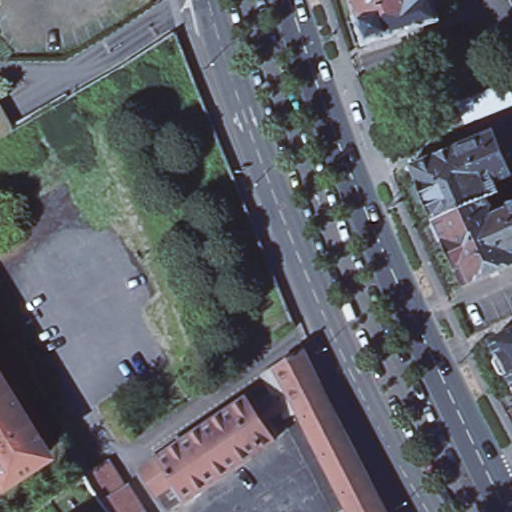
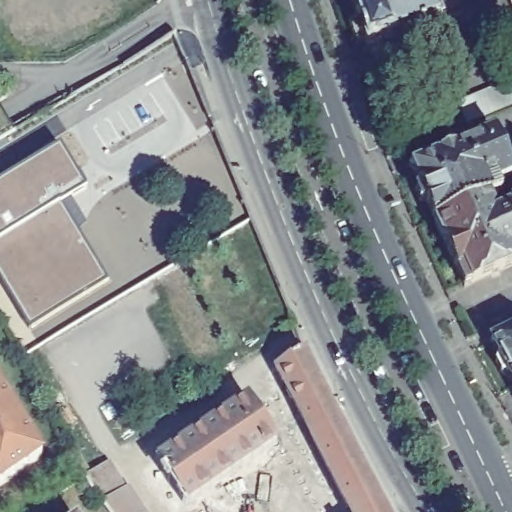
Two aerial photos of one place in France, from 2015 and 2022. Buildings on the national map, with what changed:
unchanged [(449,19),(363,45),(362,44),(354,46),(348,24),(356,21),(349,0),(443,0),(449,19)]
unchanged [(459,16),(449,19),(443,0),(455,0),(459,16)]
unchanged [(510,0),(512,0),(512,5),(510,0)]
unchanged [(464,127),(456,104),(507,84),(512,98),(512,108),(464,127)]
unchanged [(430,202),(426,204),(419,188),(425,186),(416,165),(498,132),(512,168),(512,176),(491,185),(494,195),(490,197),(438,219),(430,202)]
new [(86,180),(61,197),(109,277),(31,322),(0,268),(0,177),(61,138),(86,180)]
unchanged [(490,197),(494,207),(494,215),(495,218),(510,210),(509,207),(512,205),(512,267),(469,286),(438,219),(490,197)]
unchanged [(508,377),(504,378),(496,361),(499,358),(492,345),(512,334),(512,384),(508,377)]
unchanged [(301,413),(278,368),(306,351),(308,350),(330,396),(331,396),(332,398),(331,398),(301,413)]
unchanged [(278,368),(301,413),(311,432),(301,438),(287,412),(266,426),(258,413),(279,400),(267,376),(278,368)]
unchanged [(0,492),(0,398),(41,465),(0,492)]
unchanged [(311,432),(301,413),(331,398),(378,490),(379,492),(379,493),(380,495),(387,508),(389,511),(388,511),(389,512),(339,512),(301,438),(311,432)]
unchanged [(170,512),(167,507),(161,497),(145,472),(163,460),(250,401),(258,413),(266,426),(277,442),(189,501),(185,504),(173,512),(170,512)]
unchanged [(94,488),(88,477),(73,446),(81,461),(85,458),(88,463),(84,466),(90,475),(105,465),(113,460),(119,472),(128,486),(131,485),(149,512),(110,512),(103,503),(94,488)]

